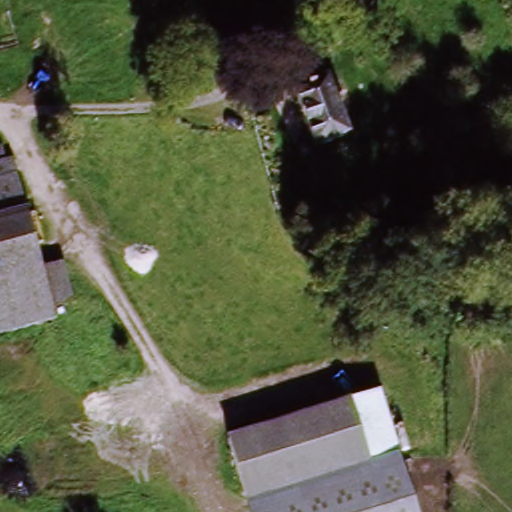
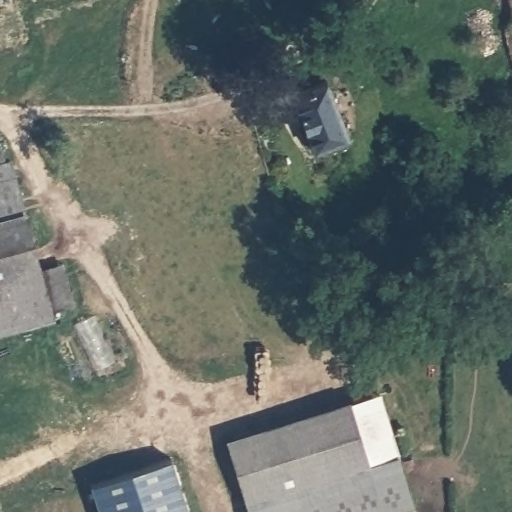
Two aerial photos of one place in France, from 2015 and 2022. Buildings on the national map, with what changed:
unchanged [(351,144),(316,155),(293,87),(328,76),(351,144)]
unchanged [(49,312),(53,322),(0,336),(0,153),(1,152),(38,273),(60,267),(73,307),(49,312)]
unchanged [(229,433),(381,390),(420,512),(254,512),(229,433)]
new [(173,467),(186,512),(98,512),(91,491),(173,467)]

